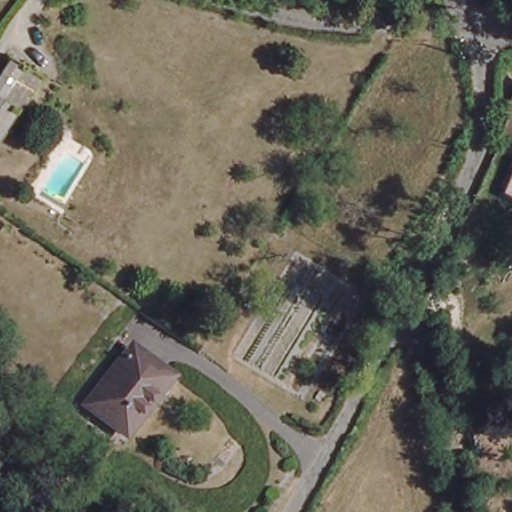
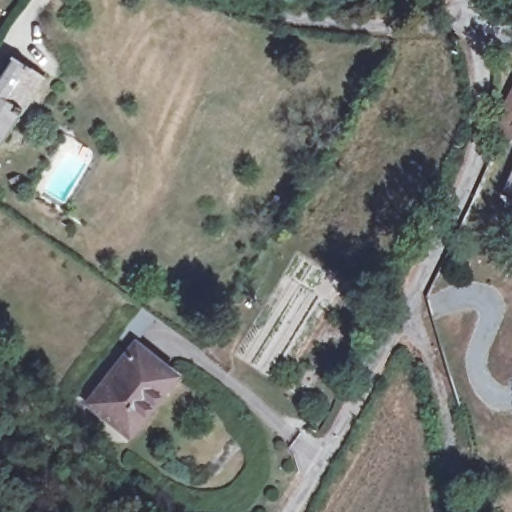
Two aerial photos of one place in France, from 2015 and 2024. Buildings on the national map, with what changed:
unchanged [(0,71),(10,58),(40,79),(0,137),(0,71)]
unchanged [(499,129),(509,108),(503,105),(512,90),(512,136),(499,129)]
unchanged [(168,374),(122,430),(86,398),(131,343),(168,374)]

